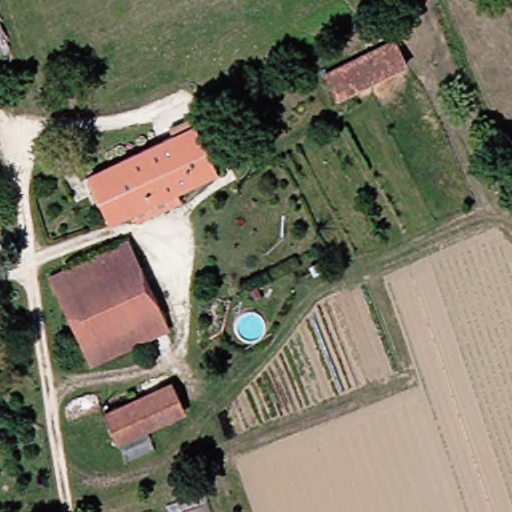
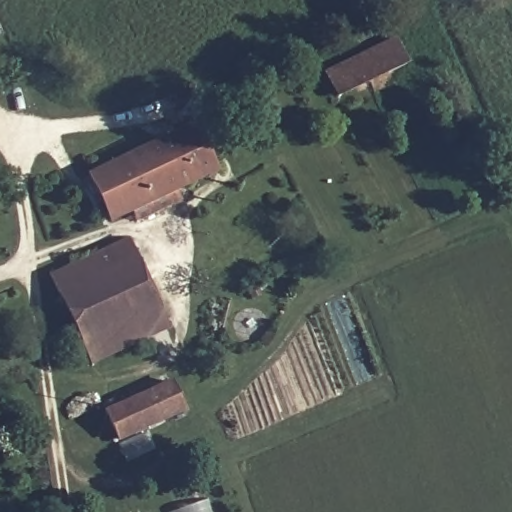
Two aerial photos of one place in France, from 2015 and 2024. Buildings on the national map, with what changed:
unchanged [(364,90),(347,97),(335,73),(404,40),(411,55),(416,65),(364,90)]
unchanged [(147,222),(142,211),(120,221),(99,176),(202,127),(224,172),(186,190),(192,201),(147,222)]
unchanged [(138,240),(170,312),(93,348),(60,276),(138,240)]
unchanged [(178,329),(100,365),(93,348),(170,312),(178,329)]
unchanged [(124,442),(110,414),(177,382),(190,410),(124,442)]
unchanged [(217,490),(223,512),(178,512),(175,504),(217,490)]
unchanged [(159,510),(160,512),(152,512),(159,510)]

